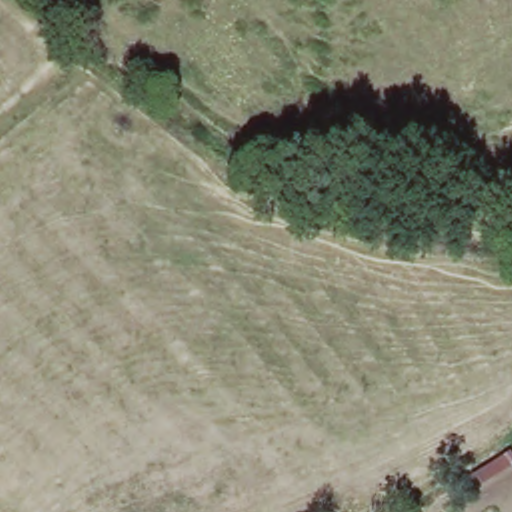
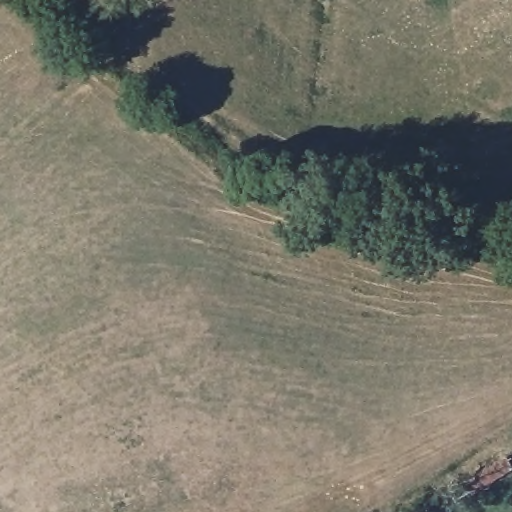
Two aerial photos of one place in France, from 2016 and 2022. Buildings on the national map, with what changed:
unchanged [(463,502),(453,487),(512,454),(512,472),(494,484),(463,502)]

